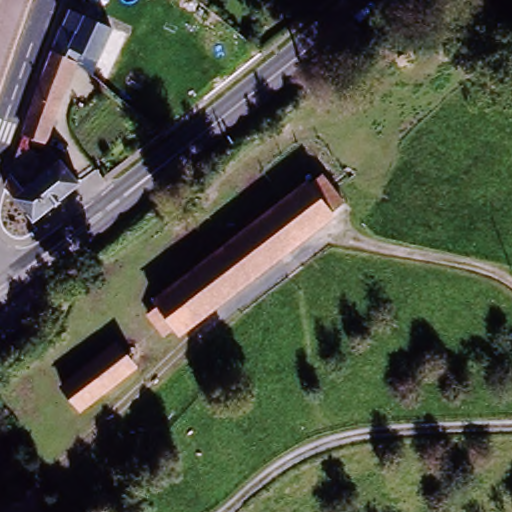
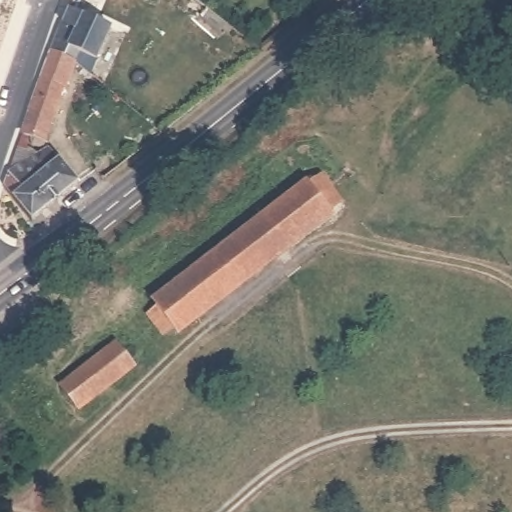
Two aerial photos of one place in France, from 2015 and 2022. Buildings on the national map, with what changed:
unchanged [(20,133),(40,76),(50,49),(66,7),(106,25),(87,70),(72,61),(62,85),(40,142),(27,136),(20,133)]
unchanged [(39,145),(50,160),(56,155),(77,180),(31,219),(1,184),(6,170),(15,167),(27,136),(40,142),(39,145)]
unchanged [(170,332),(155,310),(161,305),(162,299),(312,184),(326,173),(348,202),(186,333),(181,326),(170,332)]
unchanged [(71,388),(122,347),(139,368),(87,409),(71,388)]

